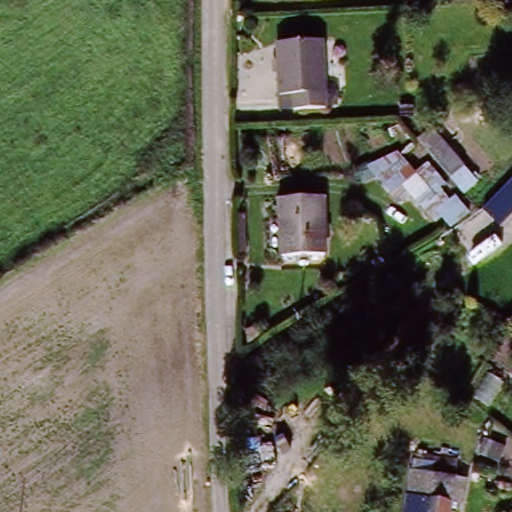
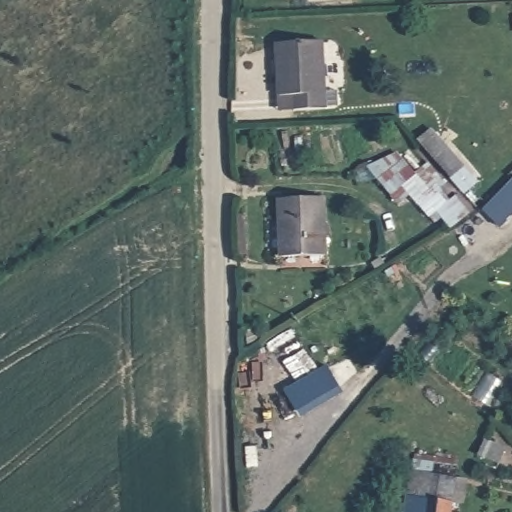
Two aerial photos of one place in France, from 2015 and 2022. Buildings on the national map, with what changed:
unchanged [(323,43),(327,107),(300,109),(299,94),(282,94),(279,45),(323,43)]
unchanged [(422,146),(435,134),(468,165),(456,179),(422,146)]
unchanged [(465,193),(477,212),(443,237),(413,197),(398,207),(366,166),(397,145),(445,201),(463,192),(465,193)]
unchanged [(505,218),(489,201),(512,178),(512,211),(505,218)]
unchanged [(282,258),(280,198),(323,196),(326,256),(282,258)]
new [(345,392),(299,419),(282,391),(326,364),(345,392)]
unchanged [(423,504),(425,492),(463,497),(462,510),(462,512),(423,512),(423,504)]

